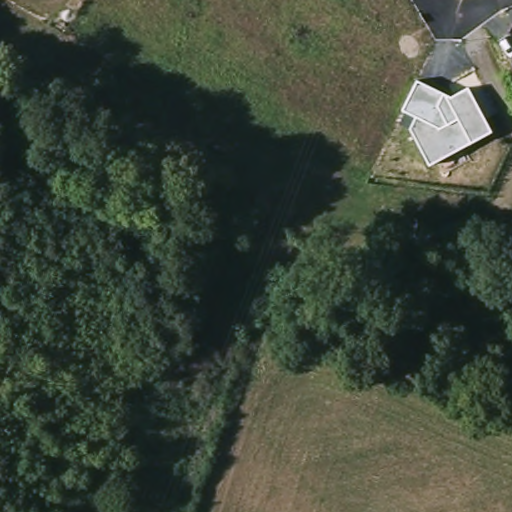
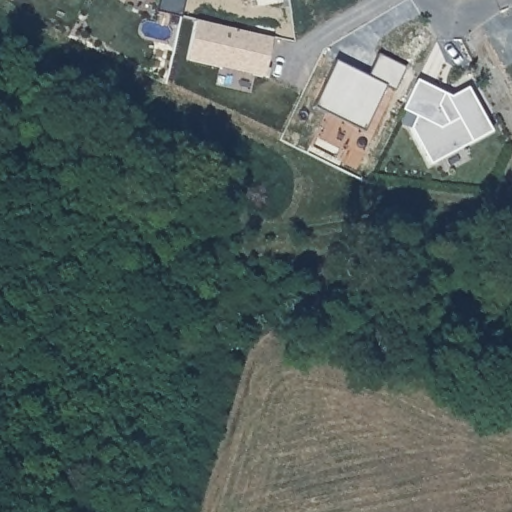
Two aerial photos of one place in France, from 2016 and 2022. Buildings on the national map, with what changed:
new [(153,10),(156,0),(183,0),(179,16),(153,10)]
new [(186,56),(195,16),(271,34),(263,74),(186,56)]
new [(362,129),(312,106),(335,60),(366,76),(378,54),(404,66),(394,89),(384,85),(362,129)]
unchanged [(409,130),(411,112),(402,109),(418,80),(453,95),(469,86),(490,130),(429,160),(409,130)]

